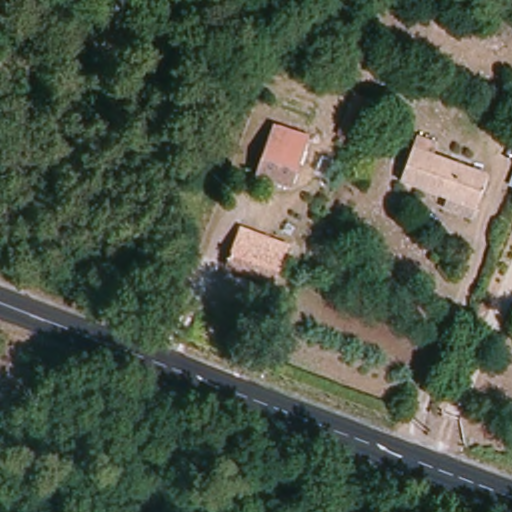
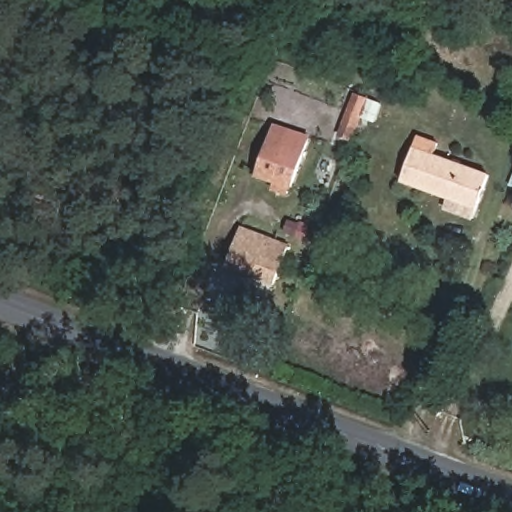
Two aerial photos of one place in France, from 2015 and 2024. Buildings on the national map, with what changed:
unchanged [(285,187),(254,172),(275,126),(306,139),(285,187)]
unchanged [(469,220),(441,208),(445,199),(398,180),(416,136),(437,144),(432,156),(486,177),(469,220)]
unchanged [(274,283),(228,263),(242,229),(288,246),(274,283)]

